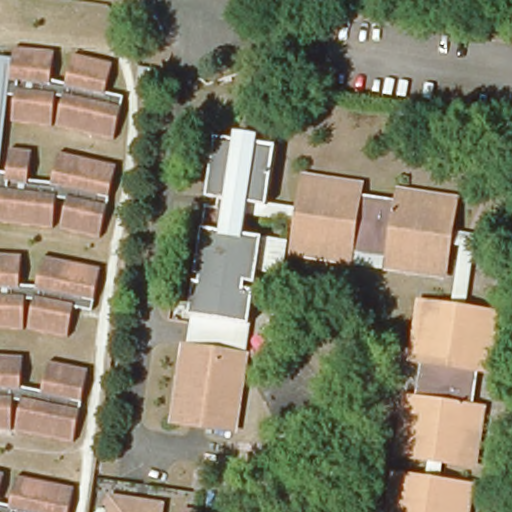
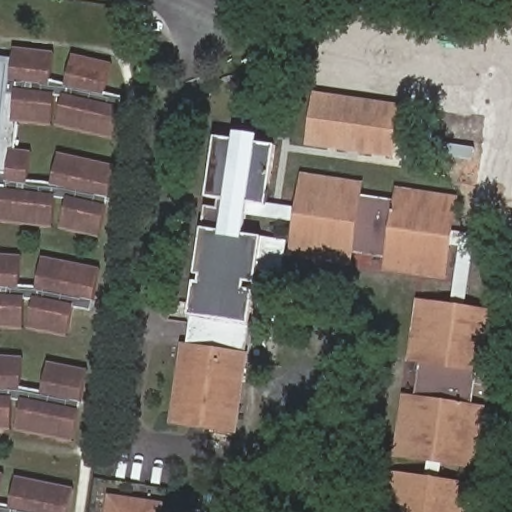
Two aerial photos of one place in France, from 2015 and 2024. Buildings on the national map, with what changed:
unchanged [(7,68),(10,39),(50,43),(46,72),(62,76),(68,47),(107,56),(101,85),(118,89),(109,131),(52,118),(59,89),(51,87),(48,116),(8,112),(11,87),(2,87),(5,67),(7,68)]
unchanged [(6,52),(5,67),(2,87),(0,110),(0,51),(4,52),(6,52)]
unchanged [(137,76),(139,67),(155,70),(153,80),(137,76)]
new [(404,107),(398,156),(311,143),(318,94),(404,107)]
unchanged [(211,137),(229,139),(253,142),(271,145),(262,206),(244,202),(240,234),(281,240),(276,273),(251,269),(249,281),(240,280),(229,352),(240,354),(229,430),(168,422),(178,346),(182,346),(187,314),(184,313),(197,227),(200,205),(213,207),(214,198),(202,197),(211,137)]
unchanged [(5,140),(26,142),(23,170),(45,172),(51,144),(108,156),(93,227),(54,219),(60,190),(52,187),(49,217),(0,212),(0,163),(2,164),(5,140)]
unchanged [(393,190),(451,199),(439,276),(382,267),(384,255),(345,249),(343,262),(286,253),(299,175),(356,185),(354,199),(391,205),(393,190)]
unchanged [(16,281),(34,282),(39,254),(97,265),(88,307),(70,304),(64,333),(25,326),(31,296),(21,296),(20,325),(0,324),(0,251),(18,252),(16,281)]
unchanged [(471,367),(466,406),(478,407),(470,465),(392,454),(400,397),(412,398),(418,361),(405,358),(413,302),(491,312),(483,370),(471,367)]
unchanged [(16,383),(39,387),(44,359),(83,367),(69,438),(12,427),(18,399),(9,397),(8,427),(0,426),(0,353),(18,354),(16,383)]
unchanged [(309,447),(270,441),(272,425),(312,431),(309,447)]
unchanged [(464,512),(384,512),(389,474),(467,485),(464,512)]
unchanged [(11,475),(67,492),(61,512),(0,512),(0,503),(2,504),(11,475)]
unchanged [(261,512),(256,512),(241,486),(253,478),(269,507),(261,512)]
unchanged [(163,493),(161,512),(112,512),(115,487),(163,493)]
unchanged [(182,507),(197,509),(197,512),(182,512),(182,507)]

